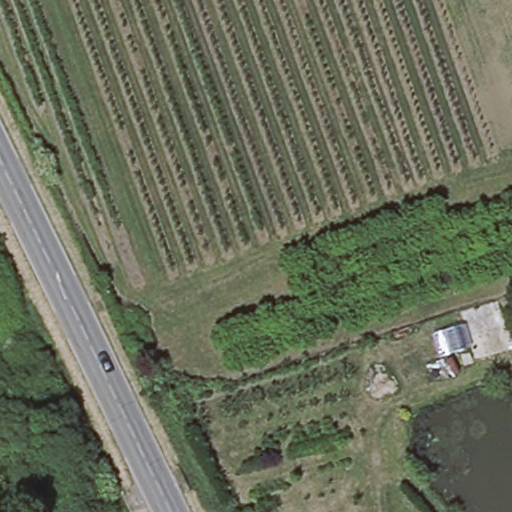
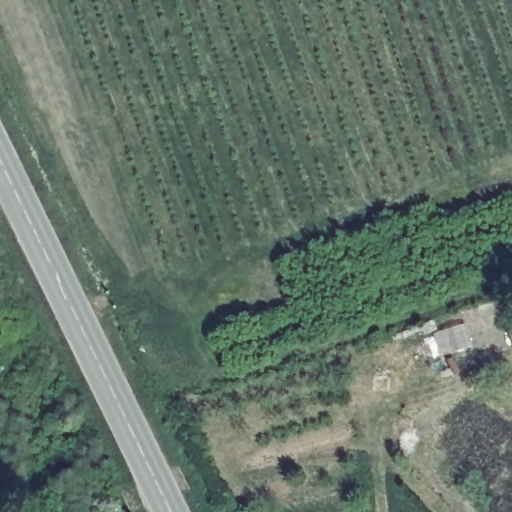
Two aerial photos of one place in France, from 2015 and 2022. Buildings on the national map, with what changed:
unchanged [(454,358),(432,363),(425,342),(480,325),(494,371),(460,379),(454,358)]

